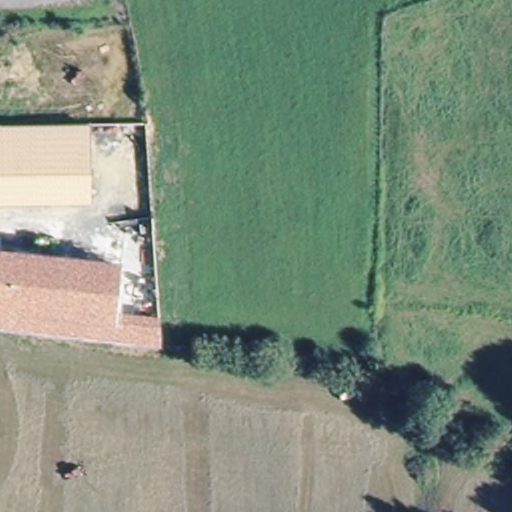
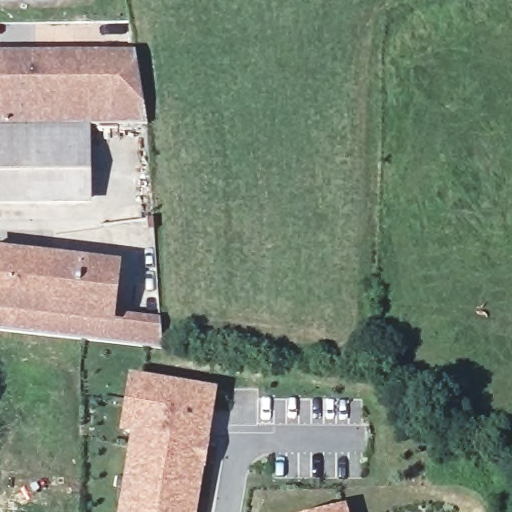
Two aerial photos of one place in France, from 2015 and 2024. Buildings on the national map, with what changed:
new [(144,124),(89,125),(0,125),(0,52),(133,50),(144,124)]
unchanged [(91,204),(0,206),(0,125),(89,125),(91,204)]
unchanged [(118,311),(160,315),(160,347),(0,327),(0,248),(122,264),(118,311)]
new [(197,512),(118,512),(133,435),(118,433),(128,375),(217,390),(197,512)]
new [(329,512),(347,506),(349,512),(329,512)]

